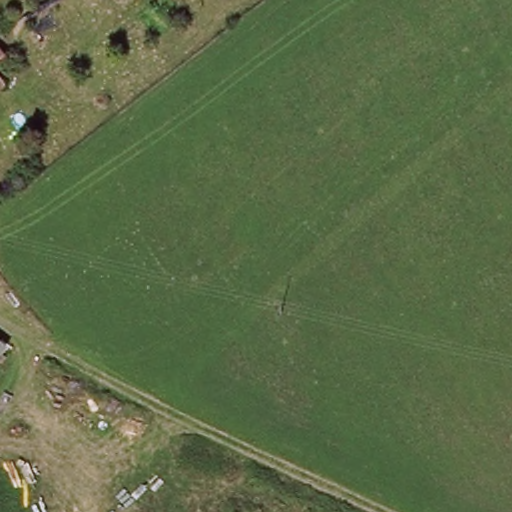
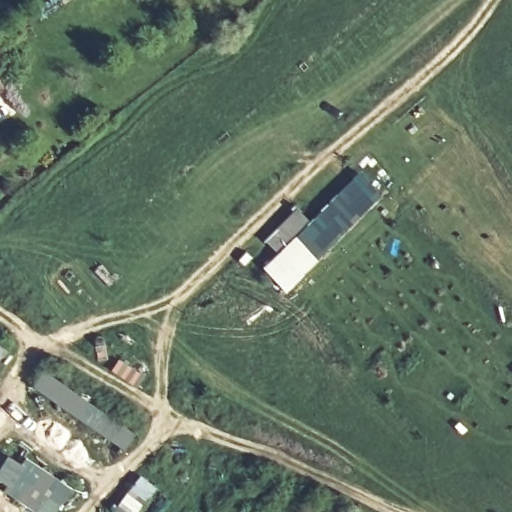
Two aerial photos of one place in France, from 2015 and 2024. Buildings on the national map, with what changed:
unchanged [(0,94),(0,74),(10,86),(0,94)]
new [(320,259),(288,292),(265,268),(297,235),(362,172),(385,195),(320,257),(320,259)]
new [(310,220),(277,251),(266,240),(299,209),(310,220)]
unchanged [(0,363),(0,351),(5,356),(0,363)]
new [(137,433),(125,449),(35,386),(46,371),(137,433)]
new [(59,512),(37,512),(5,491),(9,485),(0,479),(0,471),(10,456),(24,465),(29,457),(76,488),(59,512)]
new [(160,487),(141,512),(115,512),(114,511),(142,475),(160,487)]

